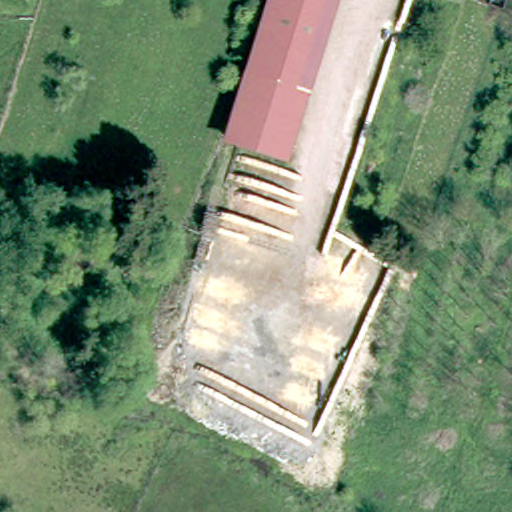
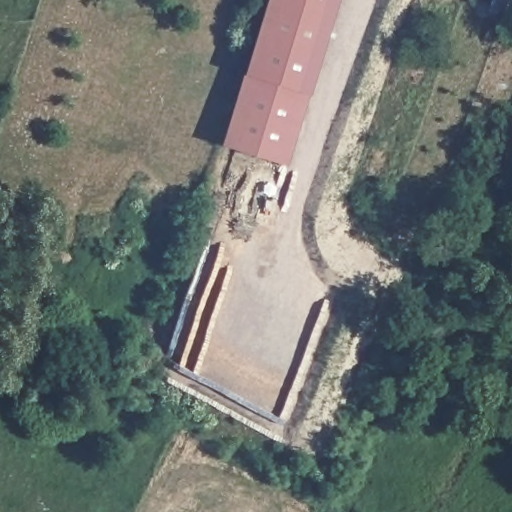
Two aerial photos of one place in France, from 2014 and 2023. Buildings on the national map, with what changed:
unchanged [(340,0),(311,88),(248,66),(270,0),(340,0)]
unchanged [(288,159),(223,138),(231,110),(233,111),(248,66),(311,88),(288,159)]

